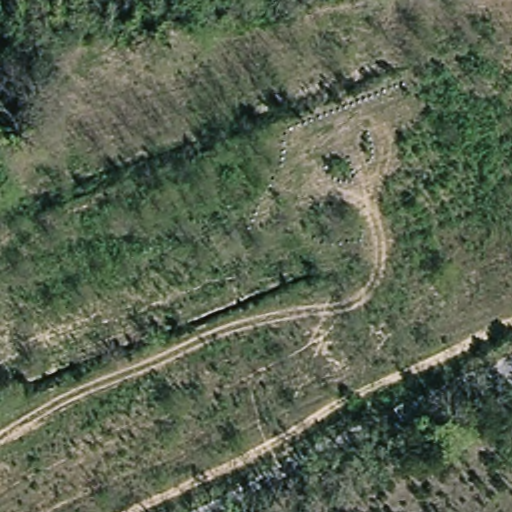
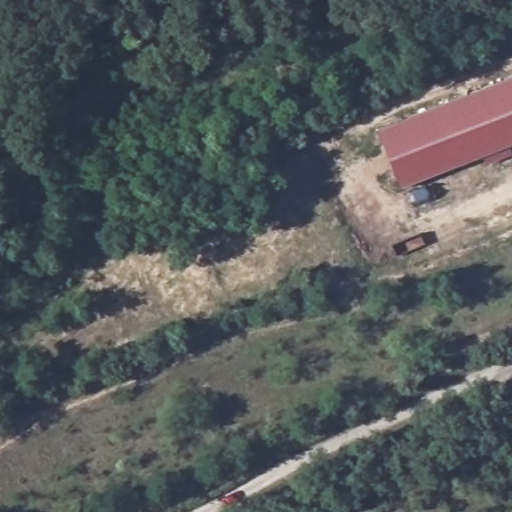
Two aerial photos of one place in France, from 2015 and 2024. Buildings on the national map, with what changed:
new [(512,78),(512,144),(399,187),(377,130),(512,78)]

